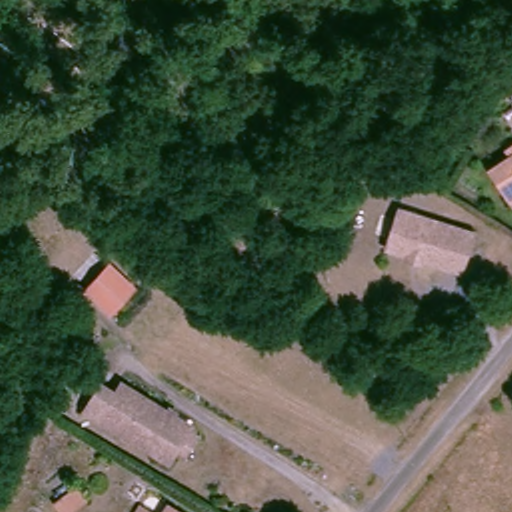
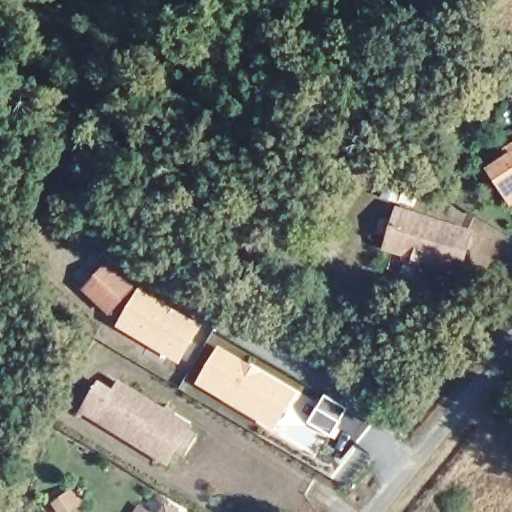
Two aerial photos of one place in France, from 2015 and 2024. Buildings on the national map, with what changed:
unchanged [(506,199),(485,165),(505,151),(502,146),(512,139),(512,196),(506,199)]
unchanged [(414,256),(415,251),(393,244),(405,206),(480,229),(468,267),(428,255),(427,260),(414,256)]
unchanged [(102,265),(126,286),(104,310),(80,288),(102,265)]
new [(179,364),(115,326),(139,288),(202,326),(179,364)]
new [(217,345),(296,392),(271,431),(194,384),(217,345)]
unchanged [(125,384),(195,427),(172,464),(88,412),(105,386),(119,394),(125,384)]
new [(323,394),(347,409),(330,436),(306,422),(323,394)]
unchanged [(66,495),(75,490),(84,503),(76,509),(72,512),(59,512),(54,505),(66,495)]
unchanged [(158,512),(138,512),(144,503),(158,512)]

